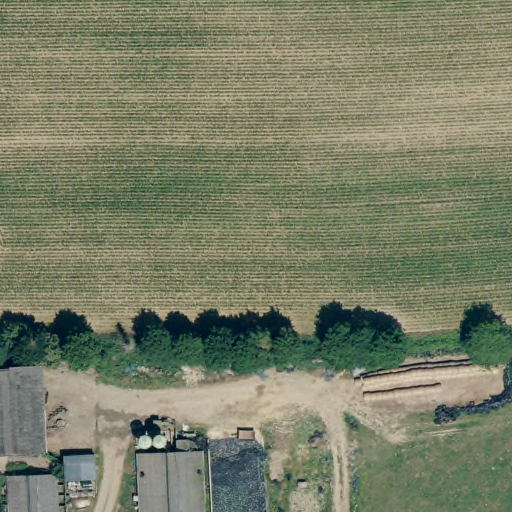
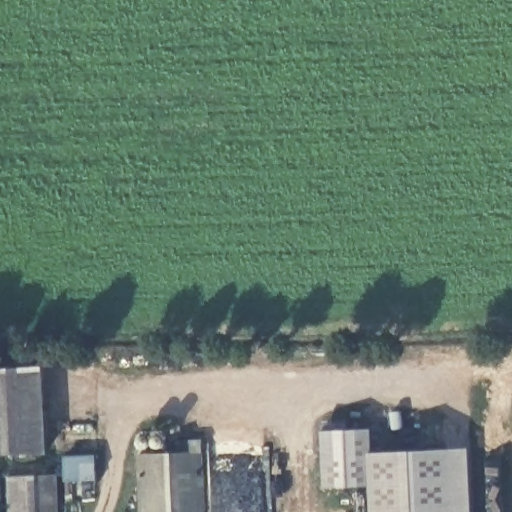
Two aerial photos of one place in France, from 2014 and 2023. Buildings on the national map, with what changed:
unchanged [(49,450),(0,452),(0,368),(46,367),(49,450)]
new [(369,487),(323,488),(321,423),(347,422),(348,429),(371,428),(372,451),(468,447),(471,512),(370,512),(369,487)]
unchanged [(140,454),(176,453),(176,440),(191,440),(191,452),(202,451),(205,512),(142,512),(140,454)]
unchanged [(63,458),(86,457),(87,481),(64,482),(63,458)]
unchanged [(6,474),(56,471),(58,512),(8,512),(6,474)]

